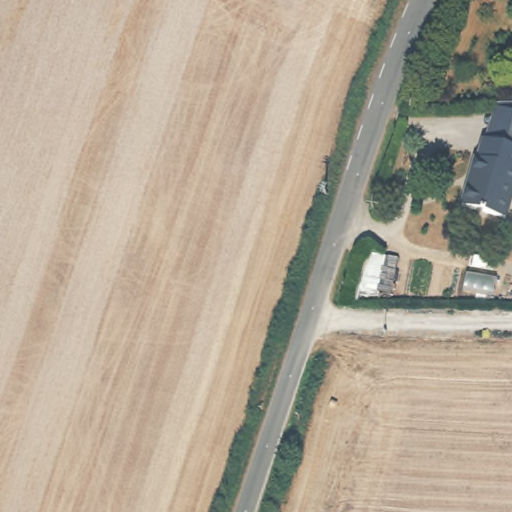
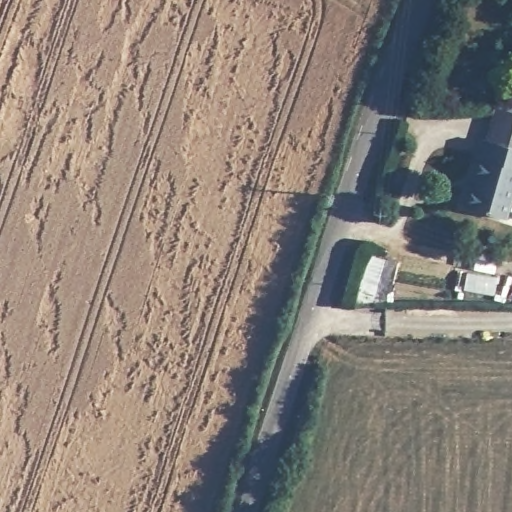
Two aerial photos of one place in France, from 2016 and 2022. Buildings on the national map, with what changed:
unchanged [(492,110),(512,115),(512,152),(483,144),(492,110)]
unchanged [(483,144),(512,152),(512,207),(508,206),(502,225),(455,210),(471,141),(483,144)]

